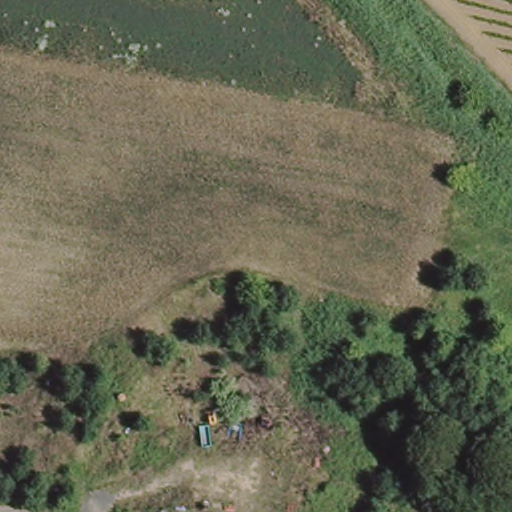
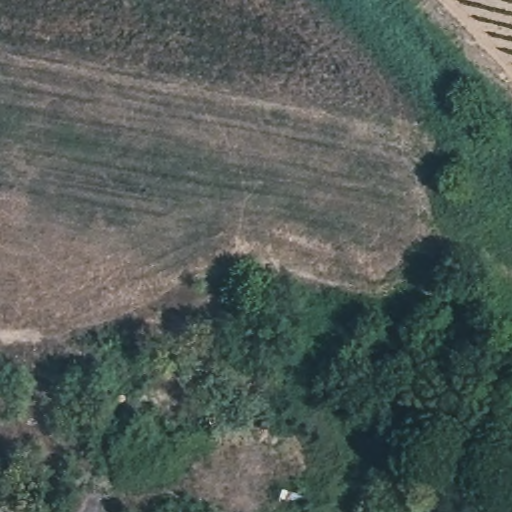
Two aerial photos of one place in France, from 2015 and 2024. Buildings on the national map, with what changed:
[]

